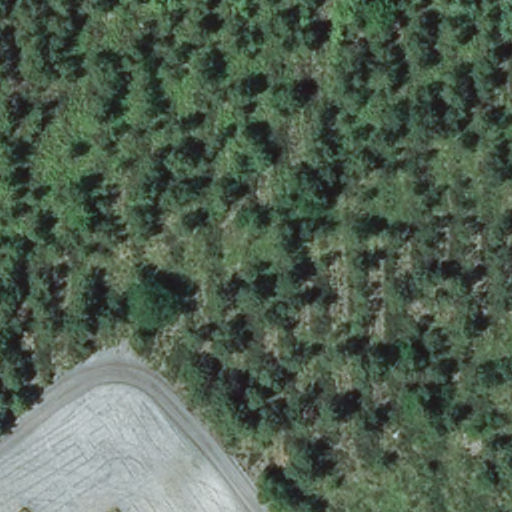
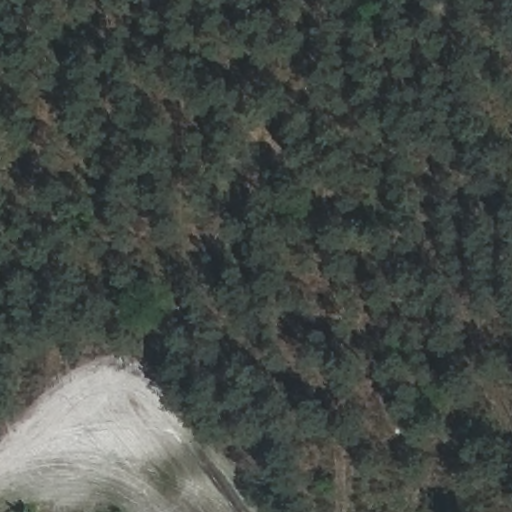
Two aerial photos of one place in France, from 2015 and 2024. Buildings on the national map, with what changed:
[]

